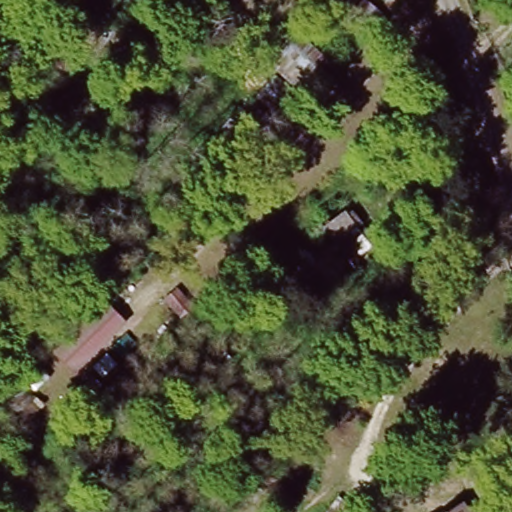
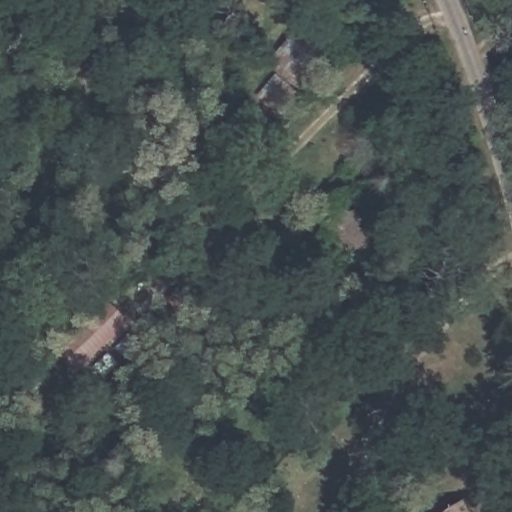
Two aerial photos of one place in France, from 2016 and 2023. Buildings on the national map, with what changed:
unchanged [(57,351),(98,302),(122,326),(80,370),(57,351)]
unchanged [(466,512),(425,512),(458,496),(466,512)]

